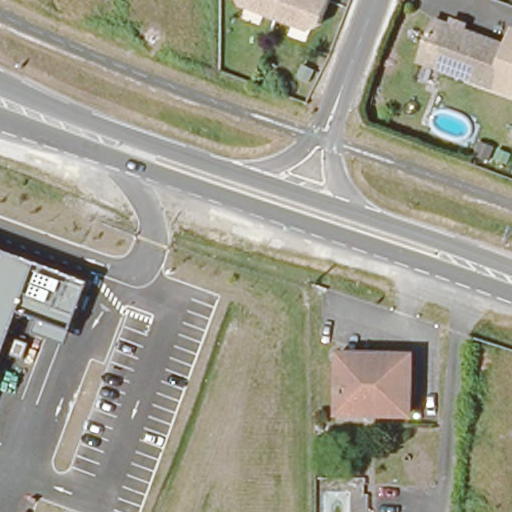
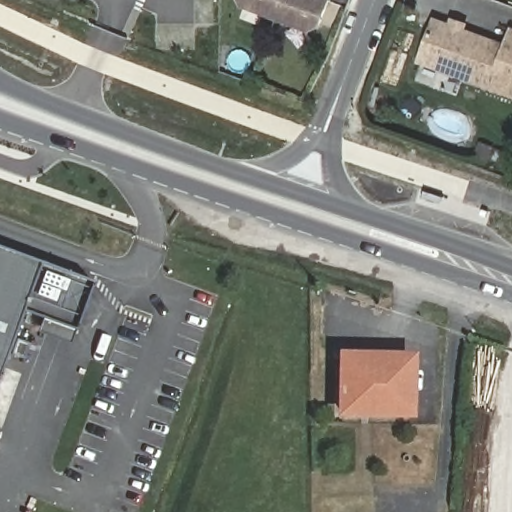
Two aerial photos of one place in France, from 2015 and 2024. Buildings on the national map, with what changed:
unchanged [(320,25),(310,31),(277,19),(244,6),(242,0),(330,0),(320,25)]
unchanged [(491,88),(419,61),(434,20),(450,25),(452,20),(466,25),(463,30),(506,45),(491,88)]
unchanged [(506,45),(504,45),(511,26),(512,27),(512,96),(491,88),(506,45)]
unchanged [(91,281),(70,342),(38,330),(43,318),(21,310),(0,370),(0,247),(91,281)]
unchanged [(337,363),(377,363),(377,351),(406,352),(405,408),(336,407),(337,363)]

